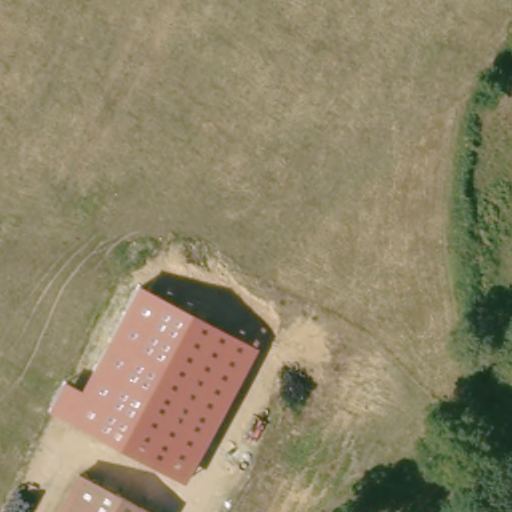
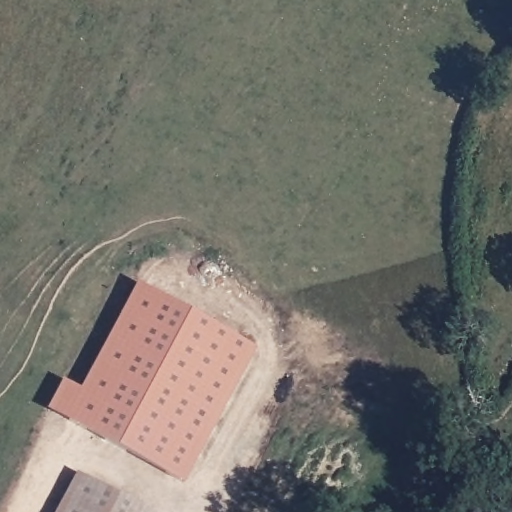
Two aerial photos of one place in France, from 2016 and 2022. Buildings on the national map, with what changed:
unchanged [(82,390),(137,285),(258,348),(187,485),(49,410),(64,381),(82,390)]
unchanged [(80,467),(165,510),(163,512),(57,512),(80,467)]

